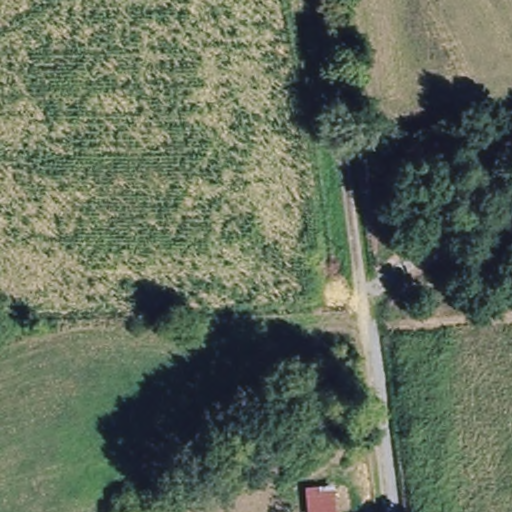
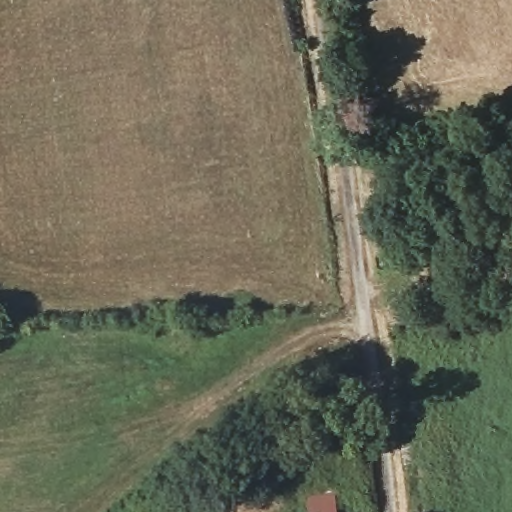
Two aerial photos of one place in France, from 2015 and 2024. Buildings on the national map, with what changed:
unchanged [(301,512),(298,485),(336,483),(340,512),(301,512)]

